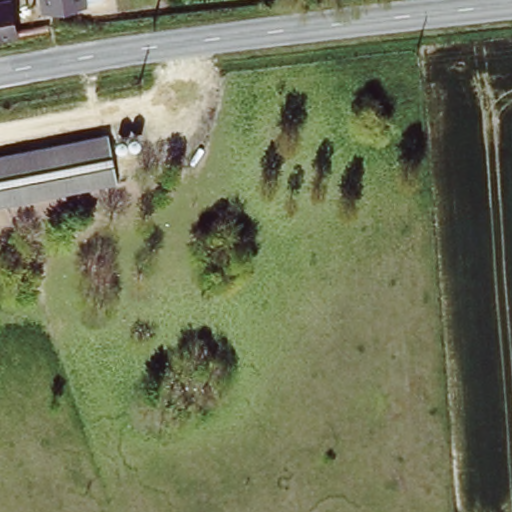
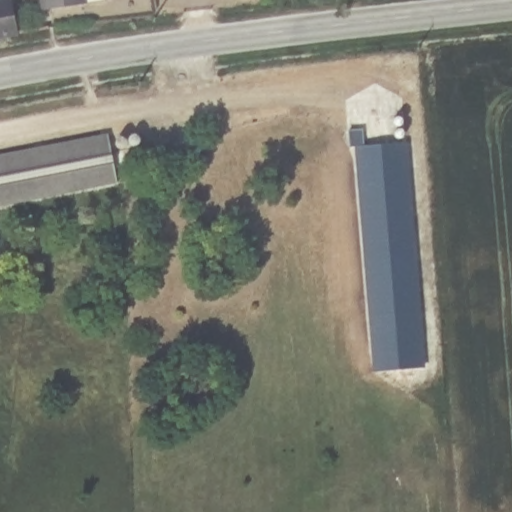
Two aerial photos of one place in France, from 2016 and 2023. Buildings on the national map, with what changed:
unchanged [(18,35),(0,38),(0,1),(4,0),(12,0),(18,35)]
unchanged [(33,3),(33,0),(62,0),(33,3)]
new [(375,371),(354,146),(350,146),(349,130),(365,128),(366,144),(406,140),(426,367),(375,371)]
unchanged [(117,182),(0,207),(0,156),(107,135),(117,182)]

